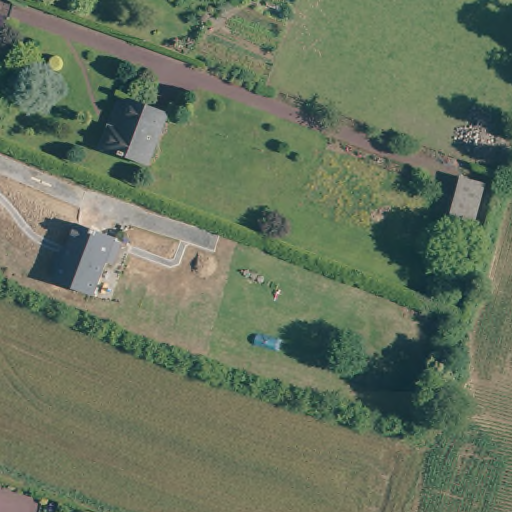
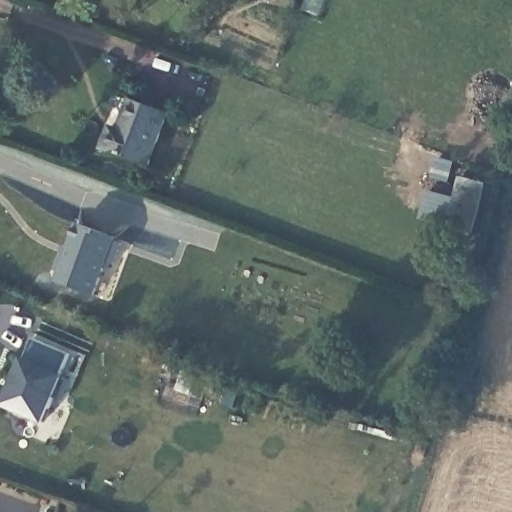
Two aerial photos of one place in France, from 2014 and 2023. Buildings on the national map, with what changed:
unchanged [(105,149),(112,130),(122,133),(136,100),(171,117),(150,168),(105,149)]
unchanged [(439,222),(452,176),(475,181),(460,230),(439,222)]
unchanged [(110,263),(97,297),(60,282),(63,272),(59,270),(65,255),(70,257),(82,225),(120,240),(119,242),(125,245),(118,266),(110,263)]
new [(69,354),(60,373),(64,375),(69,377),(60,400),(55,397),(43,425),(2,407),(23,360),(34,339),(69,354)]

